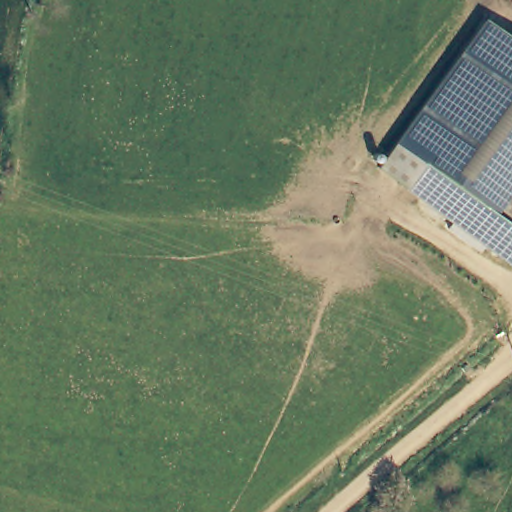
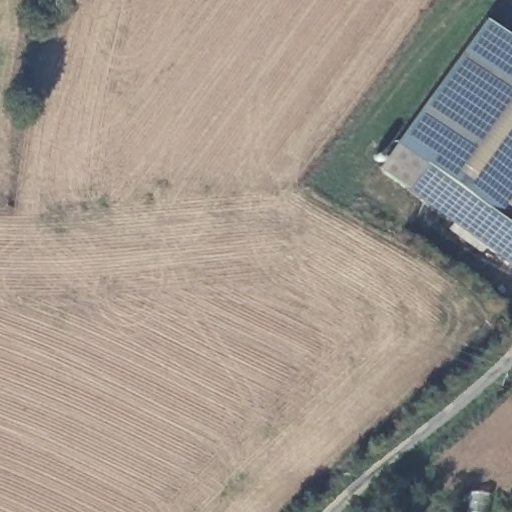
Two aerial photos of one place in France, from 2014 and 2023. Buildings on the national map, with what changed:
unchanged [(512,40),(512,168),(499,186),(512,194),(512,263),(379,168),(484,21),(512,40)]

